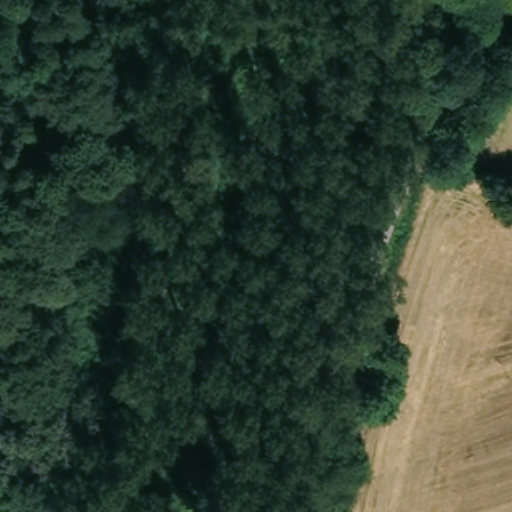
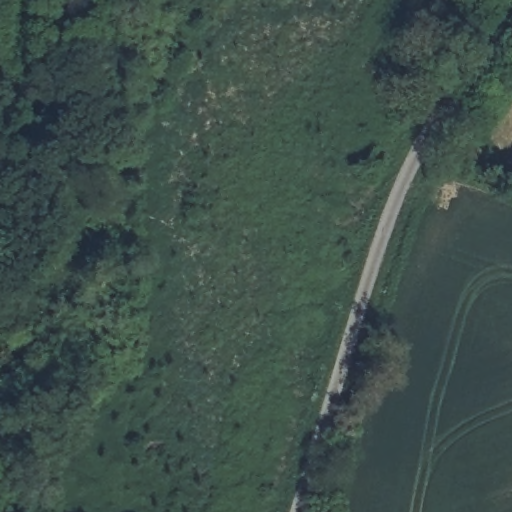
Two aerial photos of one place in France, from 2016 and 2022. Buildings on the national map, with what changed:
[]

